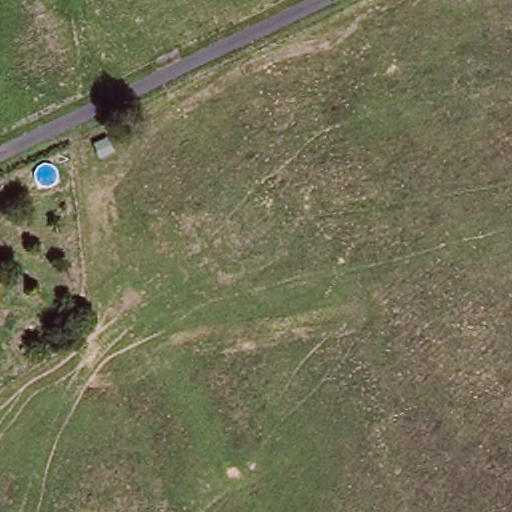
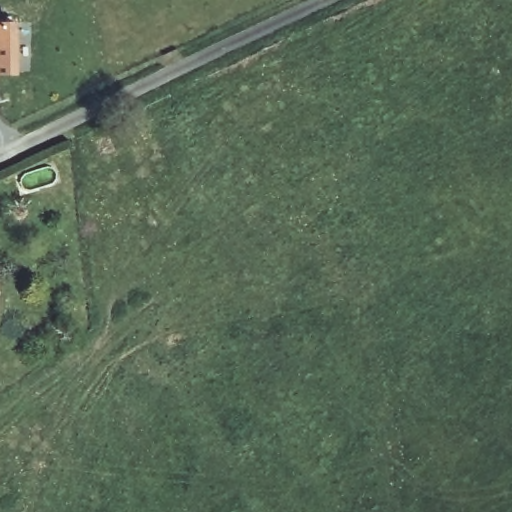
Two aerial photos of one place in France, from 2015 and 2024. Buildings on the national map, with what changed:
new [(15,20),(16,72),(0,73),(0,21),(15,20)]

